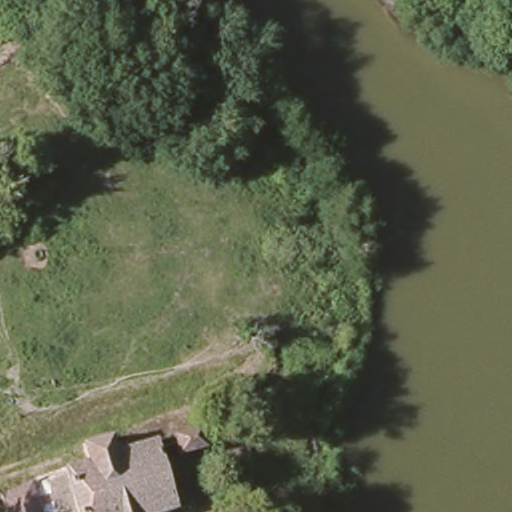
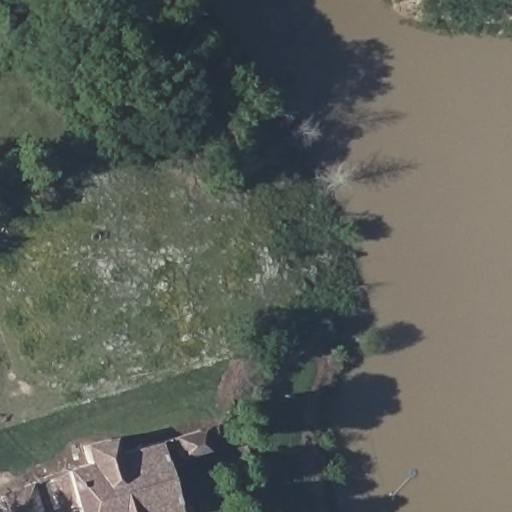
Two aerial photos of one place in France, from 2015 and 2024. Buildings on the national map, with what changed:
unchanged [(170,437),(198,432),(203,457),(175,463),(170,437)]
unchanged [(0,501),(0,495),(64,468),(85,463),(80,444),(109,438),(114,453),(154,442),(172,512),(3,512),(0,501)]

